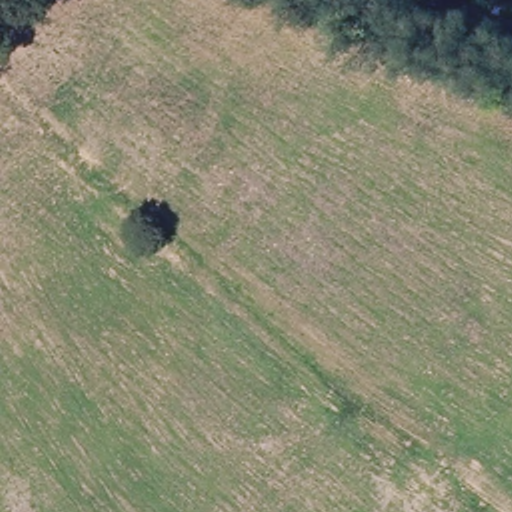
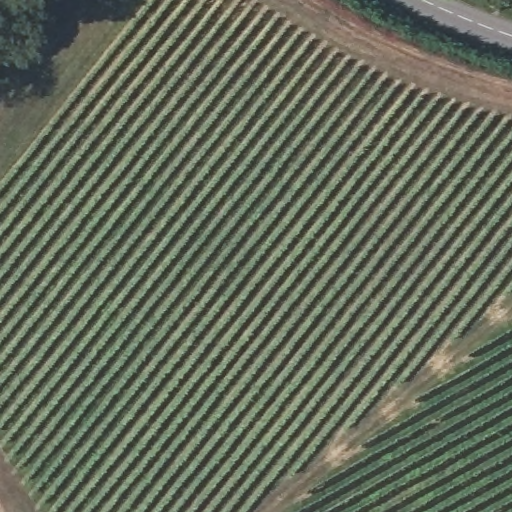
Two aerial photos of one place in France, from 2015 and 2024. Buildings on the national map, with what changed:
[]

